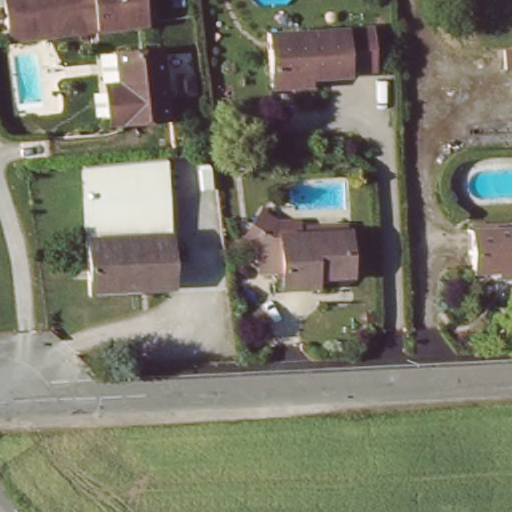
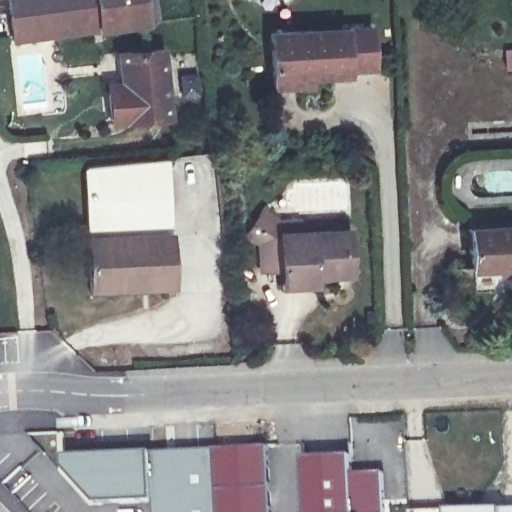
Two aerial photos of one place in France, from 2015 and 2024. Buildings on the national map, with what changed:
unchanged [(12,45),(7,0),(141,0),(145,27),(12,45)]
unchanged [(369,69),(346,70),(346,75),(328,75),(328,87),(270,88),(269,28),(367,27),(369,69)]
unchanged [(107,84),(113,84),(120,84),(118,51),(162,49),(167,119),(115,122),(107,124),(107,84)]
unchanged [(164,159),(169,225),(85,230),(81,169),(164,159)]
unchanged [(169,225),(173,287),(142,289),(142,296),(90,300),(85,230),(169,225)]
unchanged [(472,268),(471,225),(512,225),(512,274),(496,275),(497,267),(472,268)]
unchanged [(359,278),(345,279),(345,286),(325,286),(324,291),(290,291),(289,280),(268,281),(267,257),(264,249),(271,240),(275,245),(286,245),(286,235),(356,234),(359,278)]
new [(215,450),(269,447),(273,512),(219,512),(215,450)]
new [(67,469),(67,457),(215,450),(219,512),(157,512),(157,502),(99,503),(67,469)]
new [(360,461),(360,478),(390,477),(391,512),(316,512),(313,462),(360,461)]
new [(512,512),(442,512),(442,506),(512,506),(512,512)]

